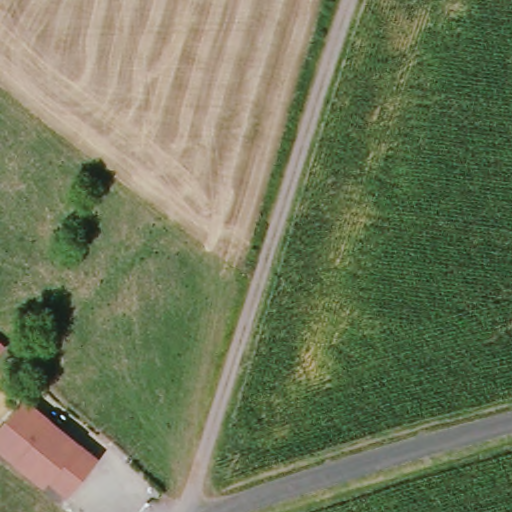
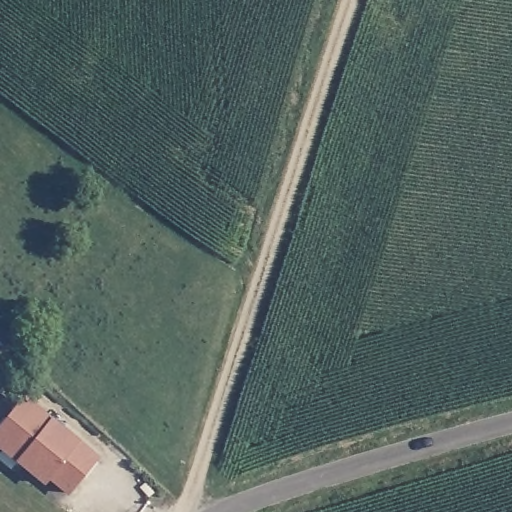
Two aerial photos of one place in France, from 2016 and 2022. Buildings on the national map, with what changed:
unchanged [(0,438),(0,428),(24,399),(95,459),(67,494),(47,478),(43,483),(17,462),(0,448),(0,438)]

